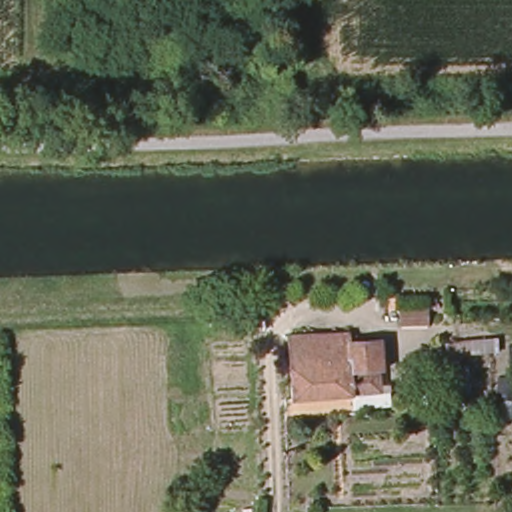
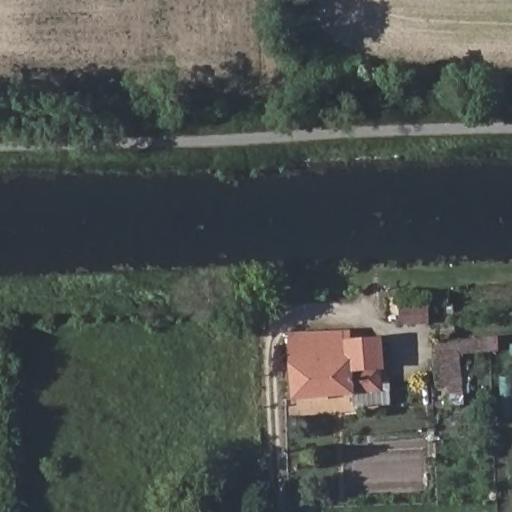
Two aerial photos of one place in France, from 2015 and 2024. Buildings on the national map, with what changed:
unchanged [(434,331),(434,342),(410,342),(410,332),(434,331)]
unchanged [(353,396),(295,401),(293,337),(348,334),(348,342),(380,341),(382,393),(389,392),(390,407),(356,411),(353,396)]
unchanged [(468,359),(468,373),(434,373),(434,343),(495,341),(497,357),(468,359)]

